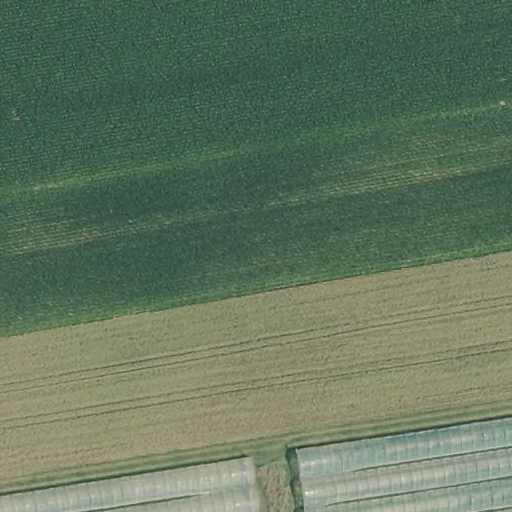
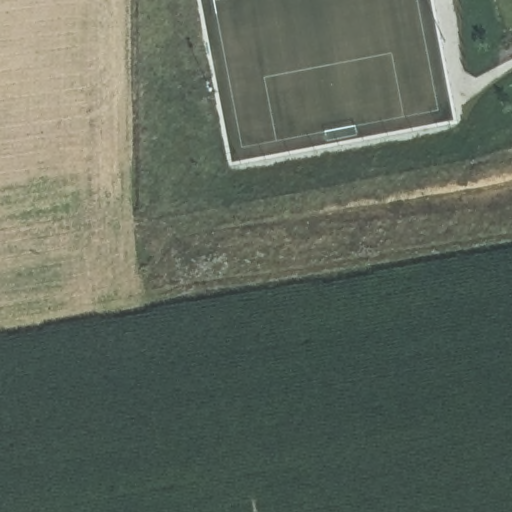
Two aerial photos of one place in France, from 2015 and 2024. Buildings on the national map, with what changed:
demolished [(512,421),(512,512),(301,512),(293,453),(512,421)]
demolished [(249,458),(257,512),(0,512),(0,495),(249,458)]

